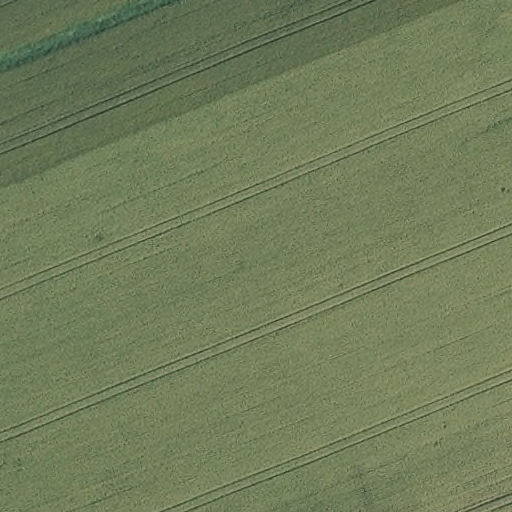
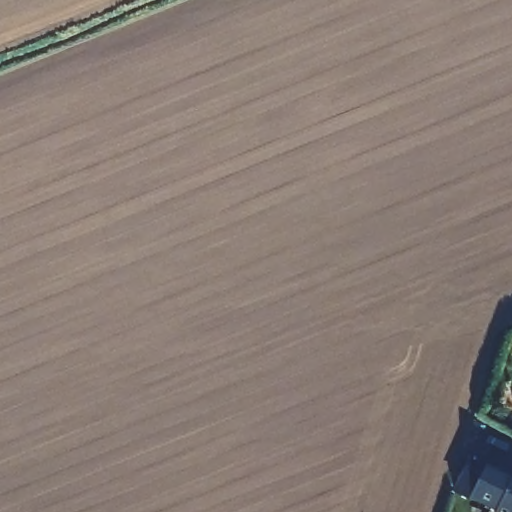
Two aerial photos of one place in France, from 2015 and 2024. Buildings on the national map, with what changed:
new [(497,510),(472,500),(485,465),(512,477),(512,512),(496,512),(497,510)]

